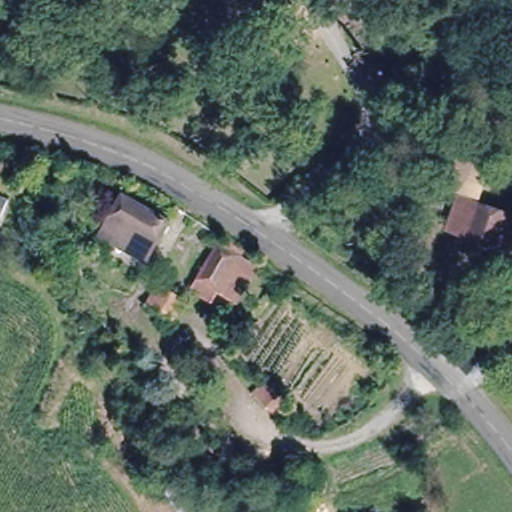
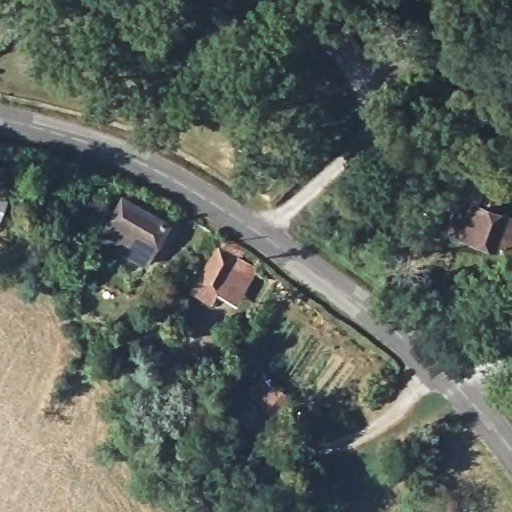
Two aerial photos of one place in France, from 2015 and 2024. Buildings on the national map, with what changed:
unchanged [(492,156),(481,189),(439,173),(454,140),(492,156)]
unchanged [(168,212),(150,253),(109,235),(125,192),(168,212)]
unchanged [(499,245),(446,227),(460,195),(509,212),(512,213),(512,249),(499,245)]
unchanged [(187,284),(220,229),(249,246),(215,300),(187,284)]
unchanged [(145,307),(161,272),(170,275),(168,285),(174,289),(165,318),(145,307)]

